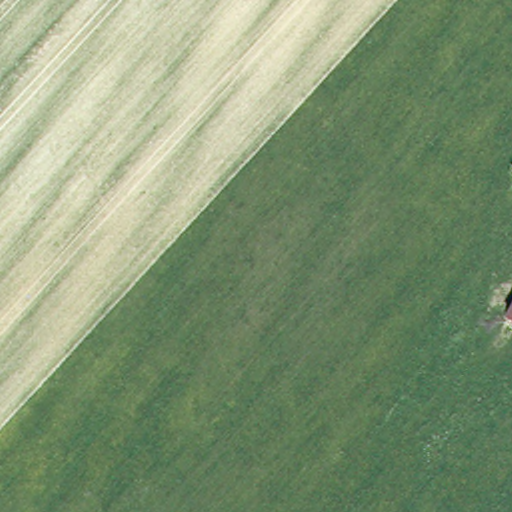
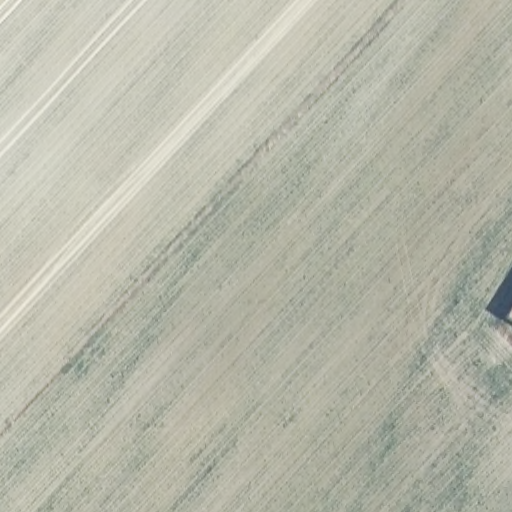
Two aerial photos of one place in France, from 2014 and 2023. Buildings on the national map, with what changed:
unchanged [(509,318),(512,313),(512,320),(509,318)]

